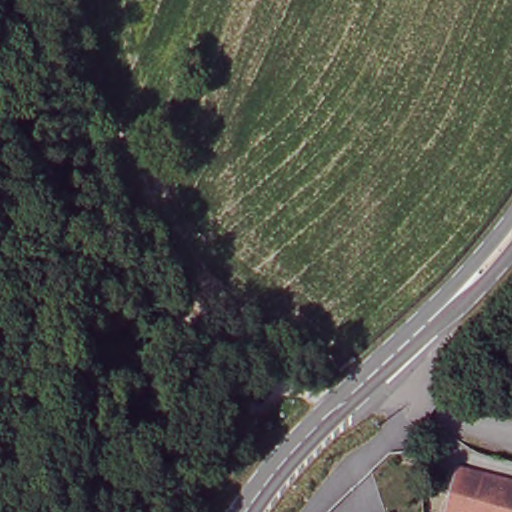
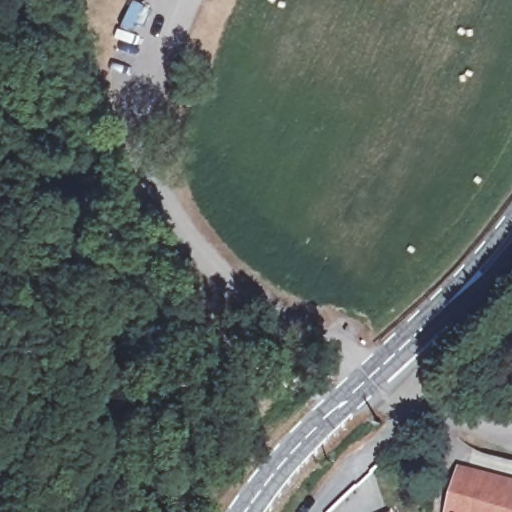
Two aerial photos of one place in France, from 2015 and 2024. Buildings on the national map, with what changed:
unchanged [(466,465),(512,483),(512,512),(450,512),(466,465)]

